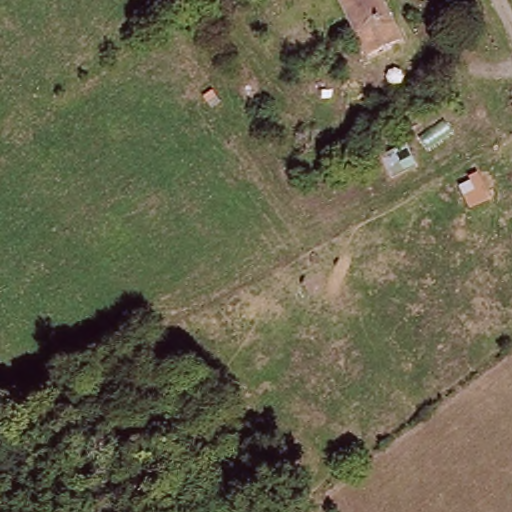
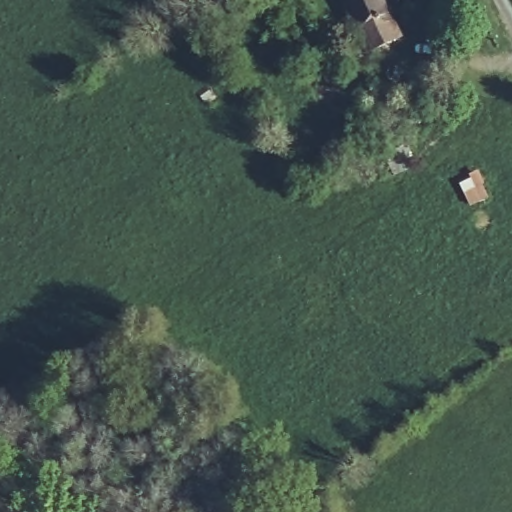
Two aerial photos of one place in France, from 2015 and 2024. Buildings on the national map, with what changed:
unchanged [(366,51),(339,0),(379,0),(397,34),(366,51)]

